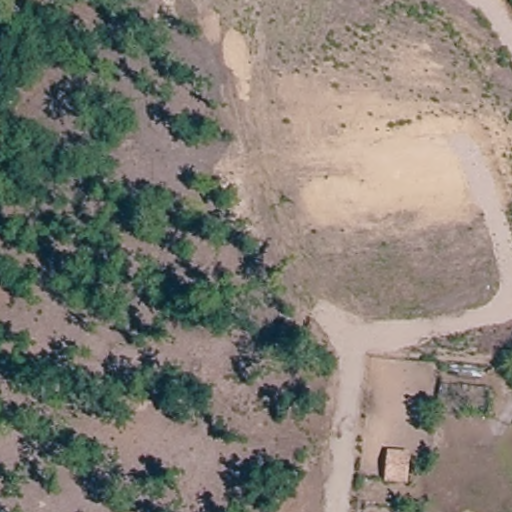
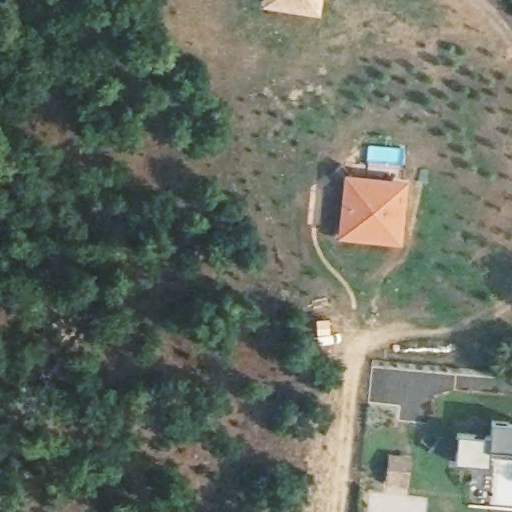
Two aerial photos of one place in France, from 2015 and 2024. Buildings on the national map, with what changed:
new [(263,4),(264,0),(324,0),(322,14),(263,4)]
new [(338,237),(345,173),(408,179),(402,244),(338,237)]
new [(492,448),(491,463),(457,460),(460,433),(491,435),(494,421),(512,422),(512,450),(492,448)]
unchanged [(410,453),(408,486),(385,483),(388,452),(410,453)]

